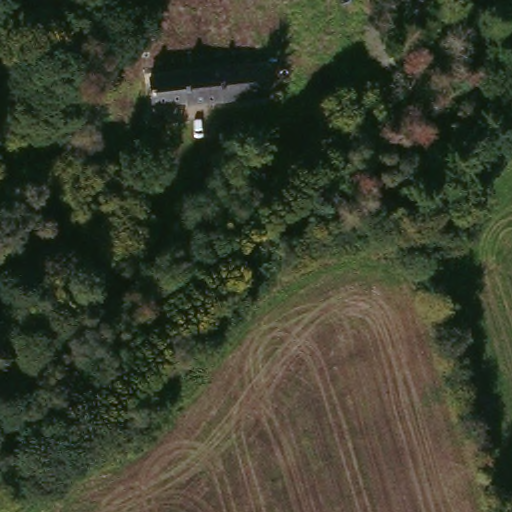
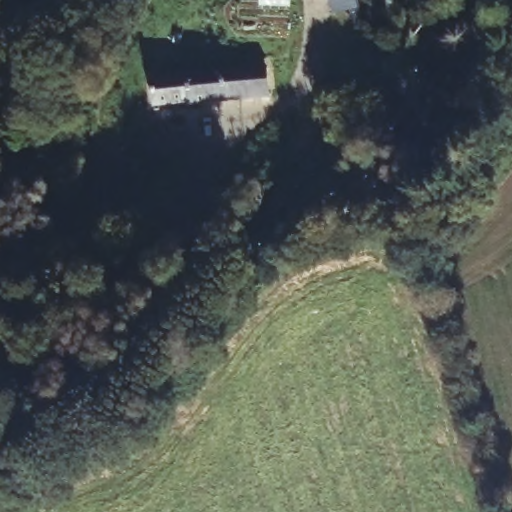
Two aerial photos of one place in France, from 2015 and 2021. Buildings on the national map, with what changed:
new [(332,12),(329,0),(357,0),(358,6),(332,12)]
unchanged [(264,67),(267,98),(187,106),(186,104),(152,107),(151,79),(264,67)]

